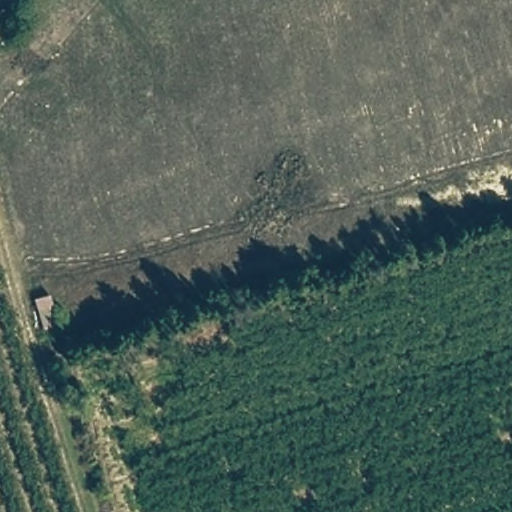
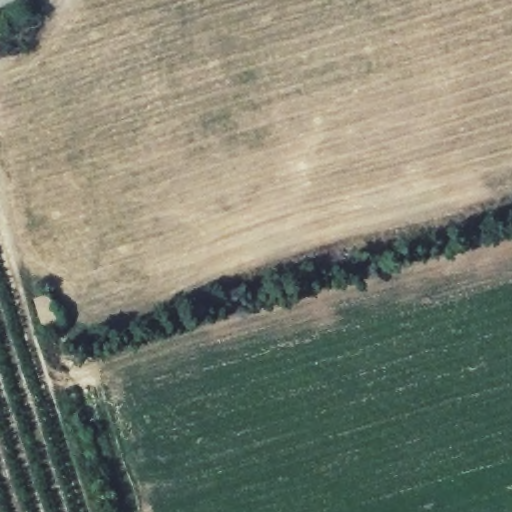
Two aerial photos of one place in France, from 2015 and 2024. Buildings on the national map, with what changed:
unchanged [(13,8),(22,31),(0,40),(0,14),(13,8)]

